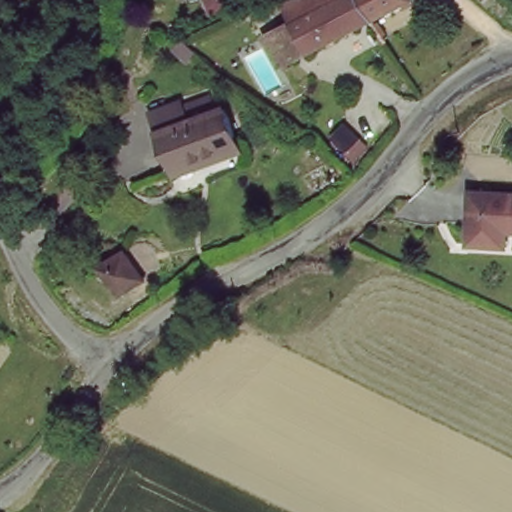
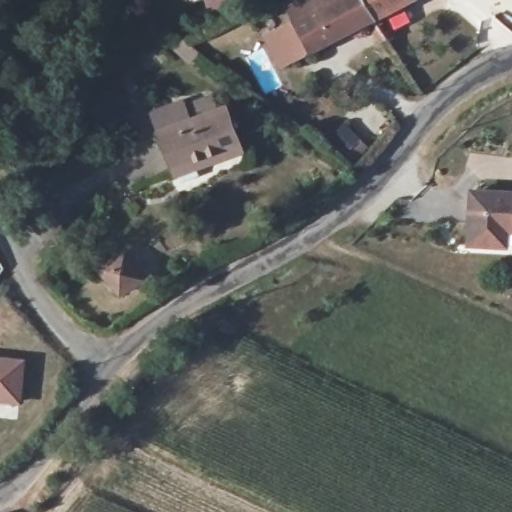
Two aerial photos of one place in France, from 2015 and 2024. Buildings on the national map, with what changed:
new [(226,10),(210,15),(205,0),(246,0),(225,6),(226,10)]
unchanged [(286,1),(287,0),(336,0),(295,19),(286,1)]
unchanged [(380,24),(379,25),(309,56),(290,22),(295,19),(336,0),(367,0),(380,24)]
unchanged [(367,0),(410,0),(414,8),(380,24),(367,0)]
unchanged [(309,56),(281,68),(264,34),(290,22),(309,56)]
unchanged [(158,129),(228,103),(246,155),(178,180),(158,129)]
unchanged [(507,241),(470,240),(472,190),(512,191),(512,241),(507,241)]
unchanged [(118,249),(145,272),(124,299),(108,280),(98,269),(118,249)]
new [(19,404),(0,402),(0,358),(25,360),(19,404)]

